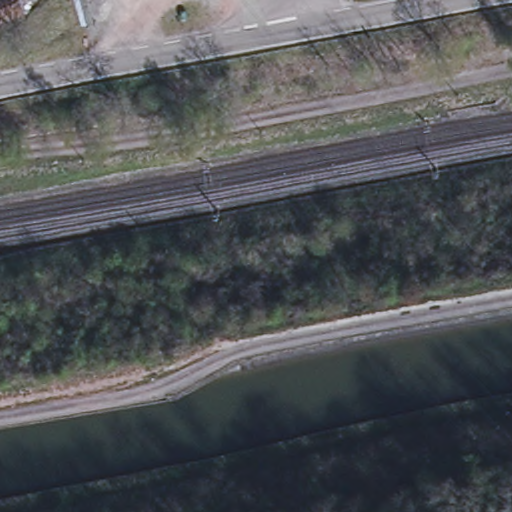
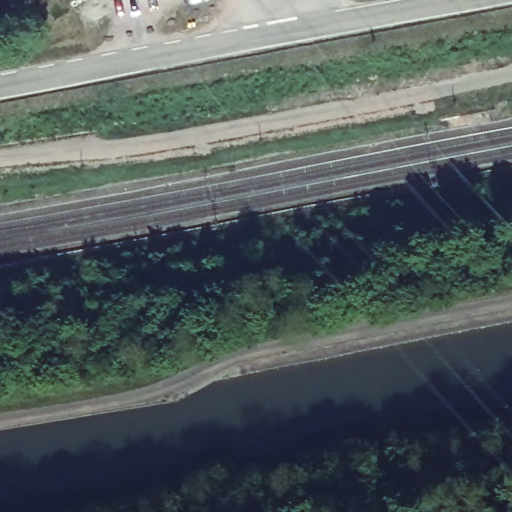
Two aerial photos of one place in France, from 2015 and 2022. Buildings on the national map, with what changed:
unchanged [(0,21),(0,0),(20,0),(25,10),(0,21)]

